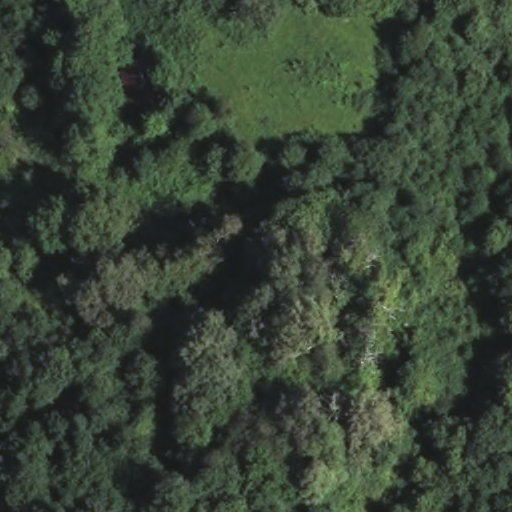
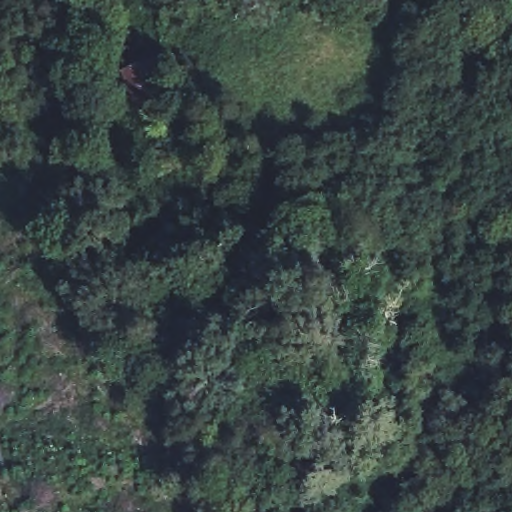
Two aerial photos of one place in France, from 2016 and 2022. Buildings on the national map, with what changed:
unchanged [(172,95),(140,110),(114,61),(134,55),(155,49),(172,95)]

